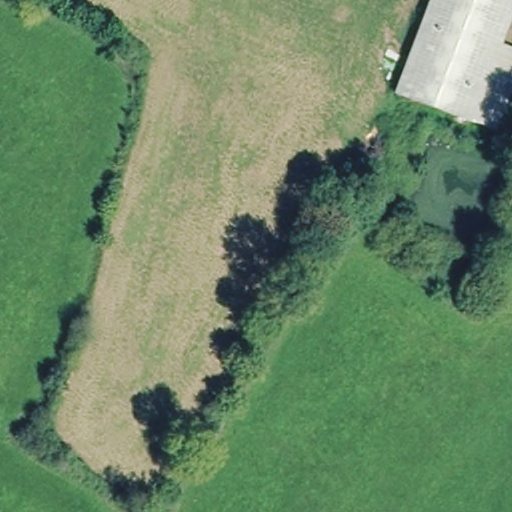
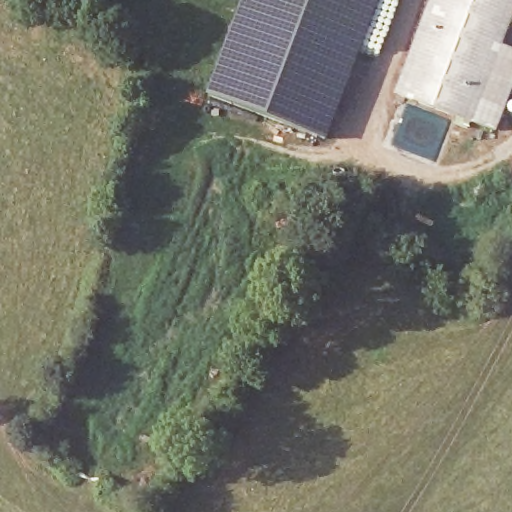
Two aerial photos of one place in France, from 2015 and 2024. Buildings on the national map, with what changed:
new [(238,0),(366,0),(370,2),(370,7),(371,12),(373,13),(326,141),(239,110),(204,95),(226,32),(238,0)]
unchanged [(466,125),(390,97),(426,0),(511,0),(495,46),(512,52),(512,71),(499,109),(475,100),(474,101),(492,107),(483,131),(466,125)]

